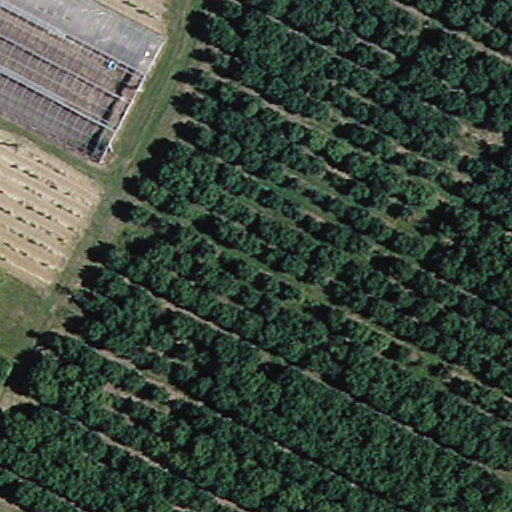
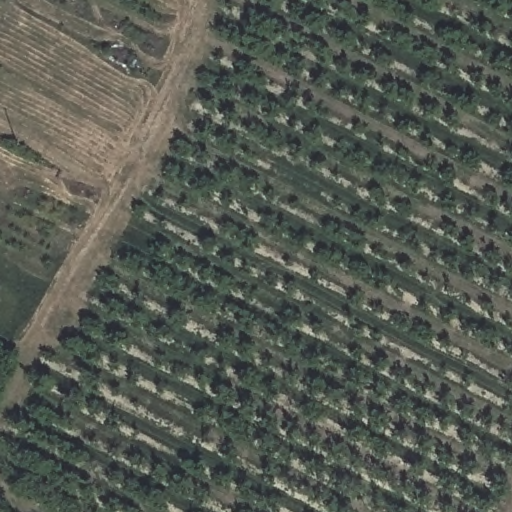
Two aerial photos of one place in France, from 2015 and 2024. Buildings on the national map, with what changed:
demolished [(151,43),(93,157),(0,108),(0,0),(72,0),(151,43)]

